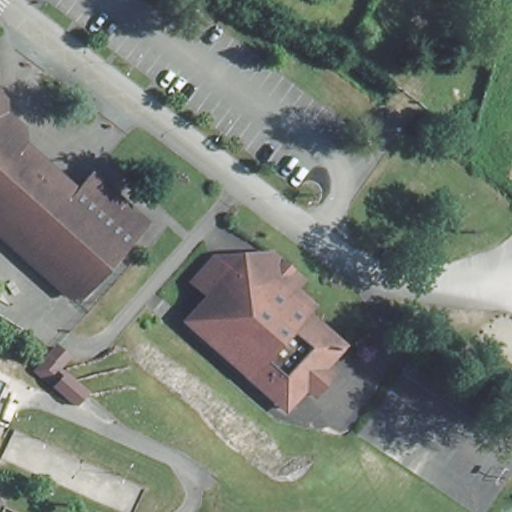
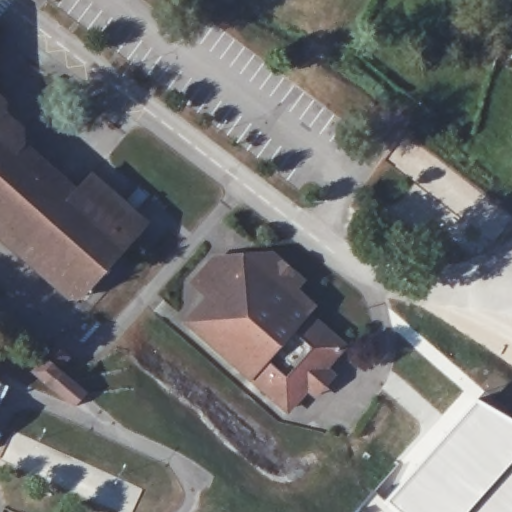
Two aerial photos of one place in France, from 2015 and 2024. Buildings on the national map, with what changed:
unchanged [(4,112),(19,126),(20,139),(77,188),(92,170),(150,221),(87,294),(70,296),(60,286),(60,274),(57,272),(43,272),(33,262),(33,250),(29,247),(15,247),(4,237),(4,226),(1,223),(0,223),(0,167),(4,163),(0,160),(0,95),(3,97),(4,112)]
unchanged [(0,167),(0,160),(4,163),(0,167)]
unchanged [(316,393),(306,384),(292,401),(273,384),(268,389),(188,318),(210,294),(194,279),(213,258),(222,265),(265,263),(267,261),(273,254),(300,278),(299,279),(293,287),(312,303),(305,311),(342,344),(323,365),(333,374),(316,393)]
unchanged [(70,357),(59,369),(88,392),(75,406),(31,371),(54,342),(70,357)]
new [(349,512),(467,376),(512,413),(512,512),(349,512)]

